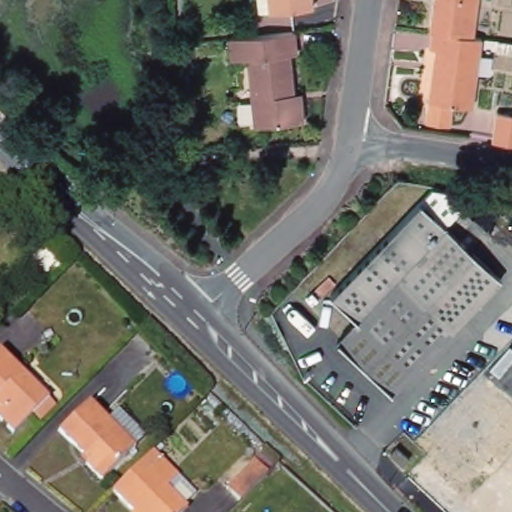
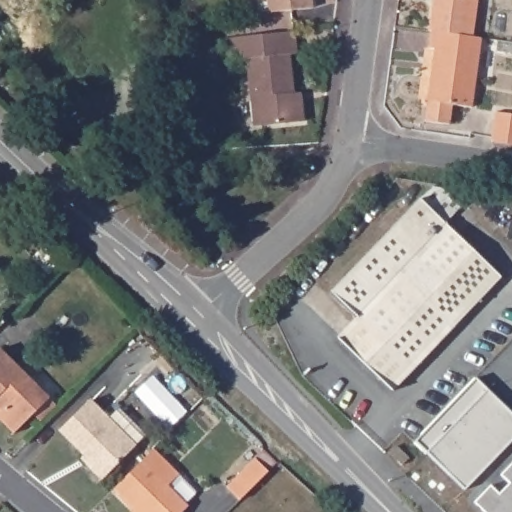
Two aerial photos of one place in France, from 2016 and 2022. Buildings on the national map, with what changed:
unchanged [(315,11),(272,15),(271,0),(313,0),(315,11)]
unchanged [(435,0),(481,0),(476,38),(433,31),(431,31),(435,0)]
unchanged [(473,110),(430,103),(436,50),(431,49),(433,31),(476,38),(483,39),(473,110)]
unchanged [(296,32),(298,55),(291,55),(295,93),(296,99),(304,99),(306,121),(258,126),(250,60),(234,62),(231,39),(296,32)]
unchanged [(512,116),(512,146),(489,143),(492,114),(512,116)]
unchanged [(419,202),(446,229),(400,276),(356,321),(329,295),(419,202)]
unchanged [(356,321),(400,276),(446,229),(500,281),(390,395),(336,342),(356,321)]
demolished [(512,443),(485,471),(434,422),(512,341),(512,443)]
unchanged [(1,349),(50,398),(15,435),(0,419),(0,350),(1,349)]
new [(512,439),(465,488),(416,441),(475,378),(512,413),(512,439)]
unchanged [(90,403),(107,420),(119,409),(147,437),(102,482),(87,467),(91,463),(60,433),(90,403)]
unchanged [(188,500),(177,511),(178,512),(118,512),(104,499),(144,458),(188,500)]
demolished [(223,485),(250,458),(263,470),(235,498),(223,485)]
new [(490,486),(499,495),(510,483),(501,475),(512,464),(512,512),(486,512),(475,502),(490,486)]

